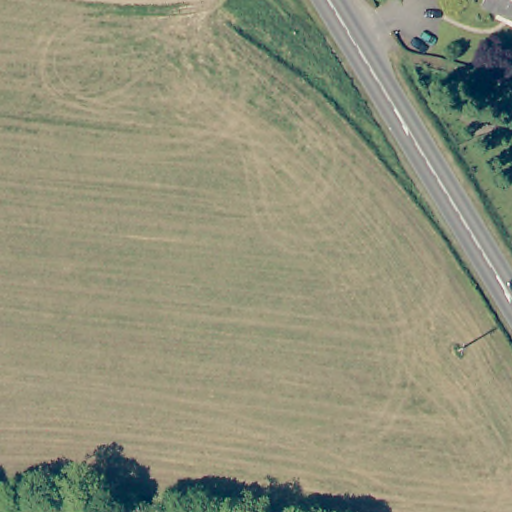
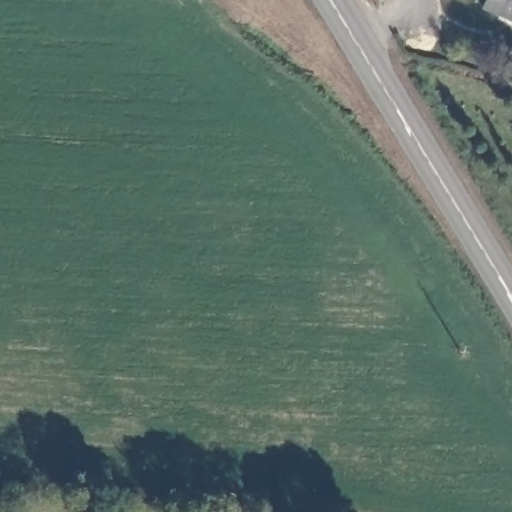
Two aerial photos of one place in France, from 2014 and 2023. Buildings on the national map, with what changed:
unchanged [(482,6),(485,0),(512,0),(512,21),(482,6)]

